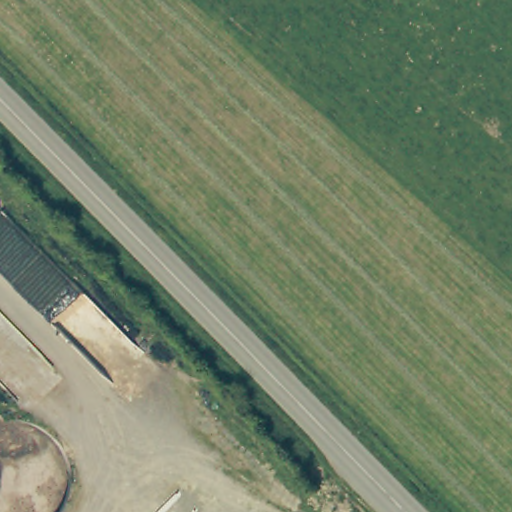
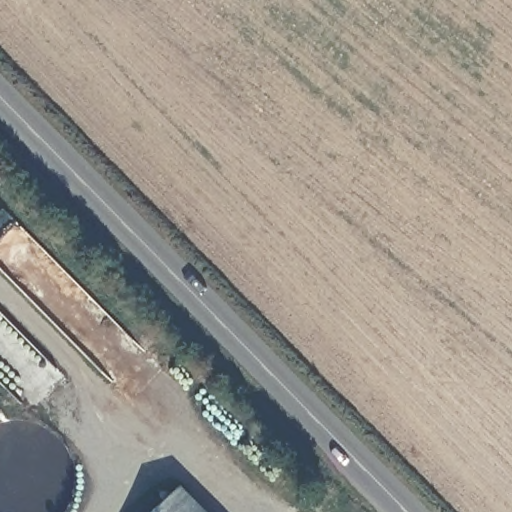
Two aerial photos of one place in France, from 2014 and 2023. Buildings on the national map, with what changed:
new [(209,512),(155,512),(184,486),(209,512)]

